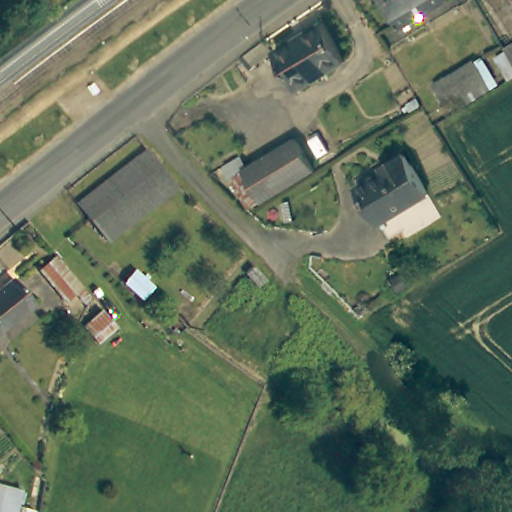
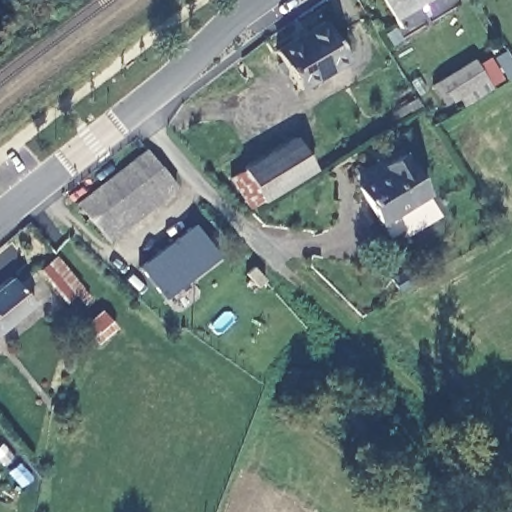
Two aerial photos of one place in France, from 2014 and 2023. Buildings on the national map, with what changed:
unchanged [(445,0),(401,27),(384,0),(445,0)]
unchanged [(284,51),(332,22),(355,60),(308,88),(284,51)]
unchanged [(248,57),(272,41),(282,52),(258,70),(248,57)]
unchanged [(505,49),(512,44),(512,61),(505,49)]
unchanged [(446,103),(437,89),(478,65),(491,87),(472,100),(467,91),(446,103)]
unchanged [(296,139),(317,172),(249,207),(232,180),(296,139)]
unchanged [(91,210),(86,204),(151,148),(164,162),(115,204),(98,219),(91,210)]
unchanged [(389,172),(385,166),(407,152),(432,194),(384,223),(363,187),(389,172)]
unchanged [(164,162),(182,185),(166,199),(118,241),(98,219),(115,204),(164,162)]
new [(164,297),(139,266),(194,225),(217,255),(164,297)]
unchanged [(39,263),(31,254),(41,245),(49,254),(39,263)]
unchanged [(45,303),(0,340),(0,296),(24,277),(45,303)]
unchanged [(0,485),(16,490),(13,503),(30,508),(29,512),(0,512),(0,485)]

